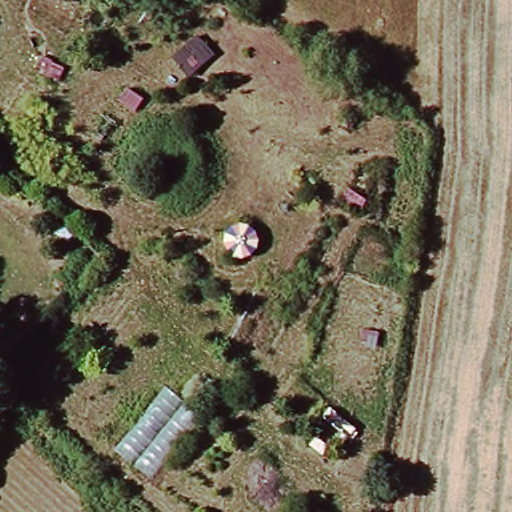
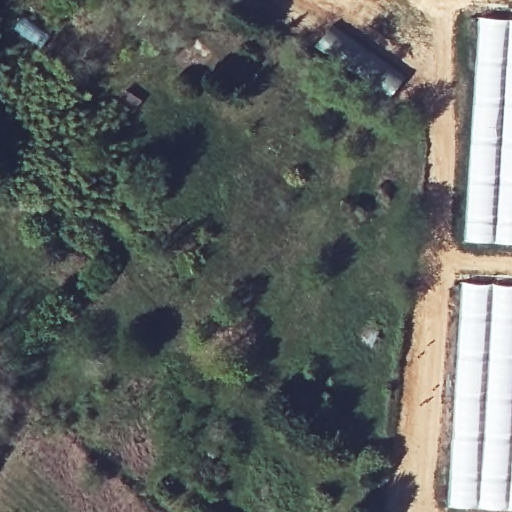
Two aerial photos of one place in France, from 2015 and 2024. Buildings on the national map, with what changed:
new [(512,17),(512,244),(464,241),(477,14),(512,17)]
new [(330,25),(359,43),(404,77),(391,95),(315,45),(330,25)]
new [(461,281),(512,284),(512,511),(448,507),(452,400),(461,281)]

